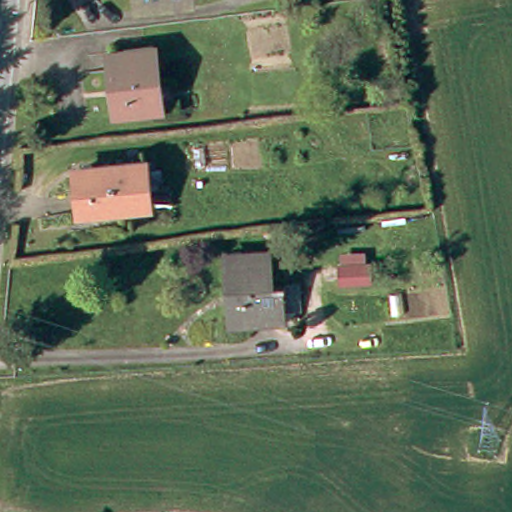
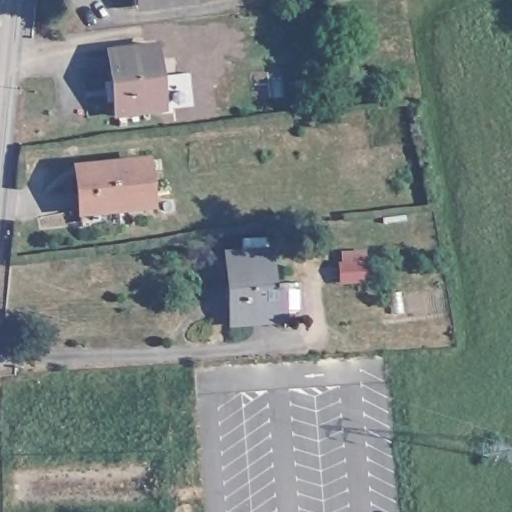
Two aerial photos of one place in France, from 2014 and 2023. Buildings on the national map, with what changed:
unchanged [(152,43),(160,106),(117,111),(108,48),(152,43)]
unchanged [(67,168),(87,166),(138,158),(145,201),(73,210),(68,175),(67,168)]
unchanged [(335,253),(363,248),(367,265),(338,270),(335,253)]
unchanged [(249,319),(230,322),(226,290),(222,291),(219,257),(262,253),(266,285),(280,283),(280,289),(275,289),(277,312),(278,316),(249,319)]

